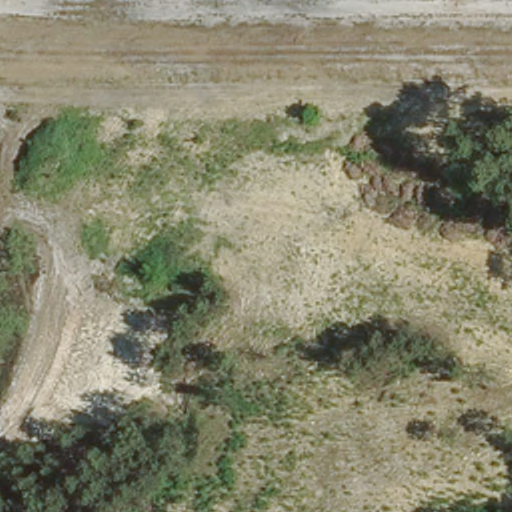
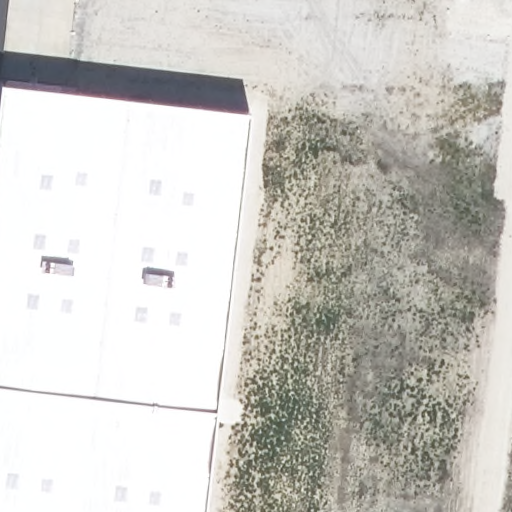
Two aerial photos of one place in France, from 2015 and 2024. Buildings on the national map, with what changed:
new [(249,112),(204,512),(0,512),(0,82),(249,112)]

